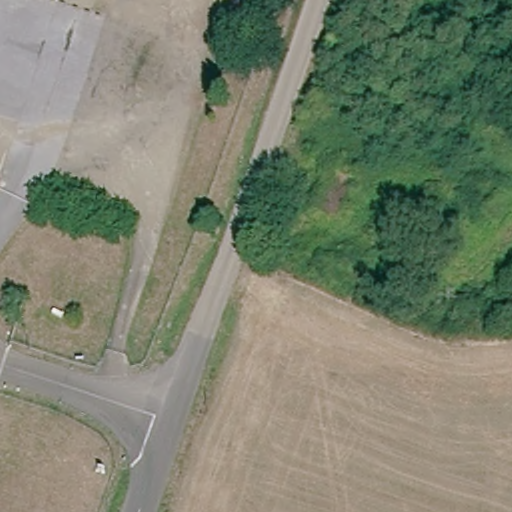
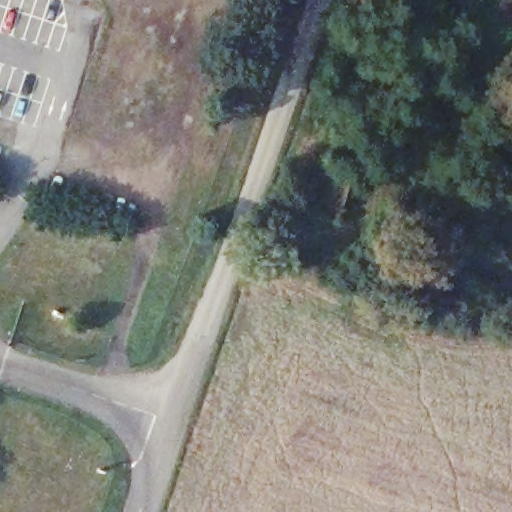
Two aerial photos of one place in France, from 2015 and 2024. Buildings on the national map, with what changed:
unchanged [(342,224),(314,214),(327,172),(354,181),(342,224)]

